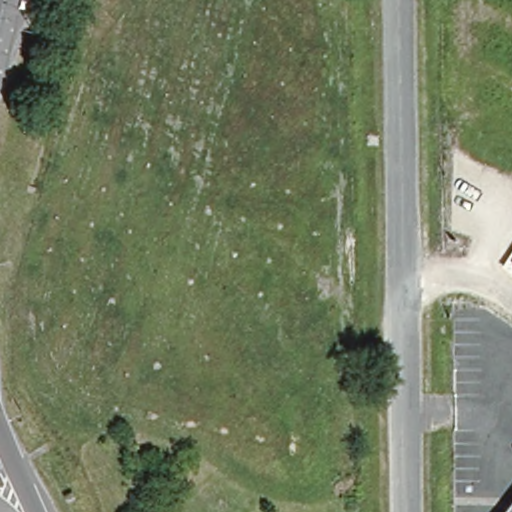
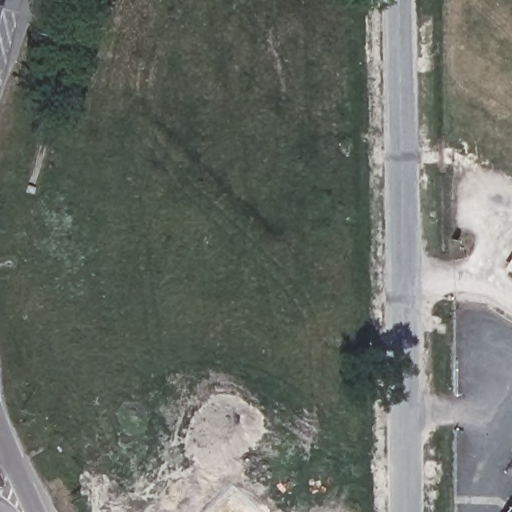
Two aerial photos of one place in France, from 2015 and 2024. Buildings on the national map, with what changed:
unchanged [(512,512),(507,512),(512,506),(512,512)]

